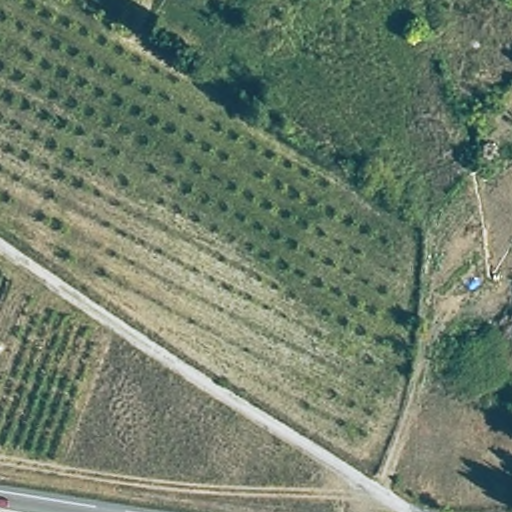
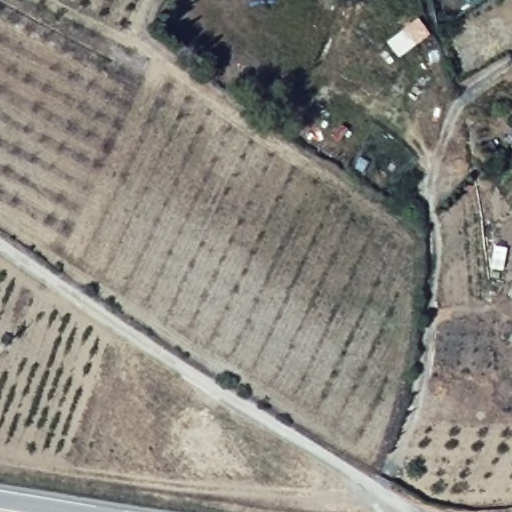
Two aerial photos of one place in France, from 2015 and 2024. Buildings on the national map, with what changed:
unchanged [(399,26),(419,13),(431,28),(414,41),(399,26)]

